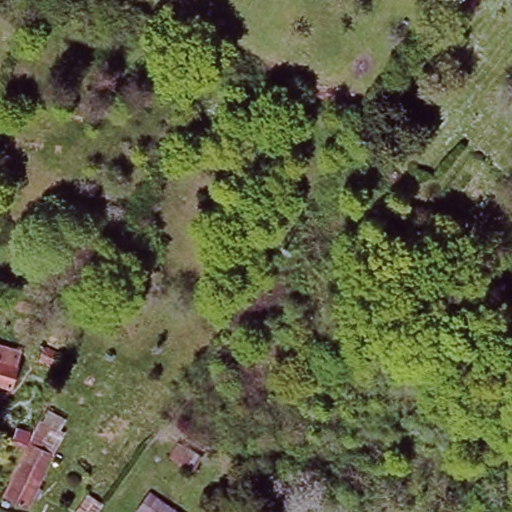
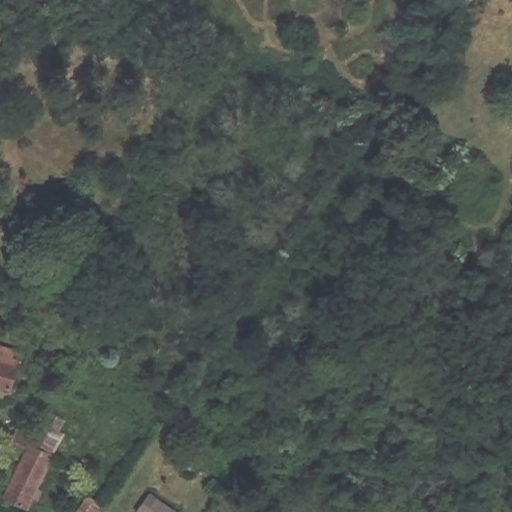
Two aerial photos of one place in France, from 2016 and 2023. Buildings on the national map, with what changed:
unchanged [(22,355),(7,389),(0,386),(0,345),(22,355)]
unchanged [(79,372),(72,383),(48,370),(55,358),(79,372)]
unchanged [(100,412),(96,420),(67,403),(70,397),(100,412)]
unchanged [(56,441),(30,487),(11,475),(36,429),(56,441)]
unchanged [(187,451),(207,463),(198,477),(177,464),(187,451)]
unchanged [(186,512),(148,512),(140,506),(152,488),(186,512)]
unchanged [(108,512),(88,512),(96,498),(110,508),(108,512)]

